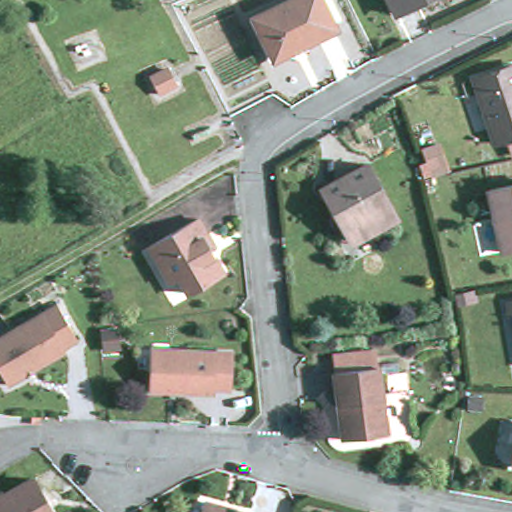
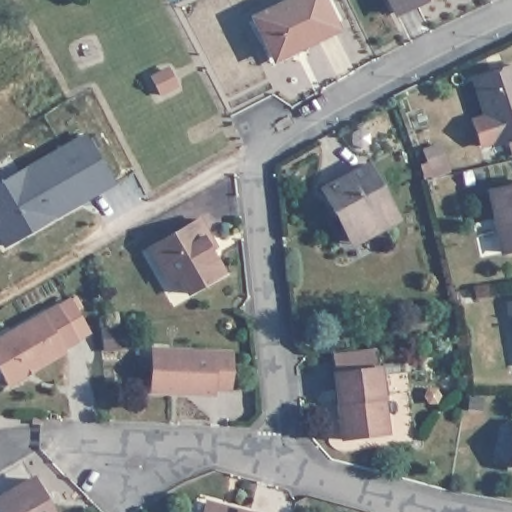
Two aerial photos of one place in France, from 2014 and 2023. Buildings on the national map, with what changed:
unchanged [(277,58),(259,18),(297,0),(324,0),(337,28),(277,58)]
unchanged [(422,0),(395,13),(394,10),(389,0),(422,0)]
unchanged [(495,141),(473,78),(511,64),(512,64),(512,135),(495,141)]
new [(115,187),(2,249),(0,243),(0,180),(85,132),(115,187)]
unchanged [(416,156),(430,151),(436,169),(423,174),(416,156)]
unchanged [(335,215),(331,218),(317,193),(362,169),(392,223),(358,242),(352,245),(351,243),(335,215)]
unchanged [(505,255),(487,194),(512,187),(512,253),(505,255)]
unchanged [(177,279),(170,284),(148,247),(197,220),(215,250),(209,253),(221,275),(186,295),(177,279)]
unchanged [(33,373),(34,374),(23,380),(22,378),(6,388),(0,377),(0,341),(55,309),(76,343),(61,353),(62,354),(33,373)]
unchanged [(151,353),(228,357),(226,392),(210,391),(210,396),(149,393),(151,353)]
unchanged [(332,376),(376,369),(385,435),(340,442),(332,376)]
unchanged [(510,468),(512,453),(512,468),(510,468)]
unchanged [(0,496),(31,478),(35,486),(51,512),(0,512),(0,496)]
unchanged [(205,506),(220,509),(220,512),(203,512),(205,506)]

